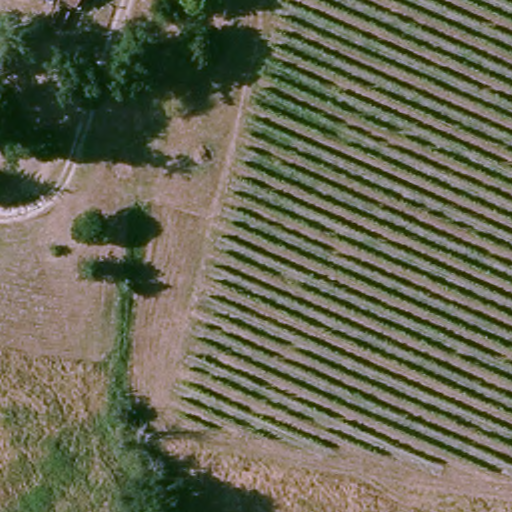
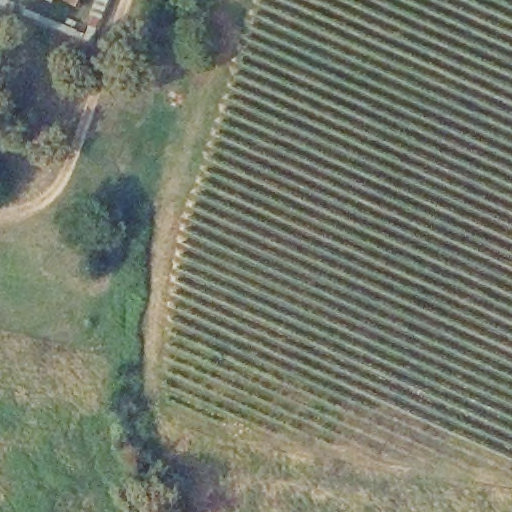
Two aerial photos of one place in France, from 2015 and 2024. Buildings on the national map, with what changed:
unchanged [(86,0),(80,9),(64,0),(86,0)]

